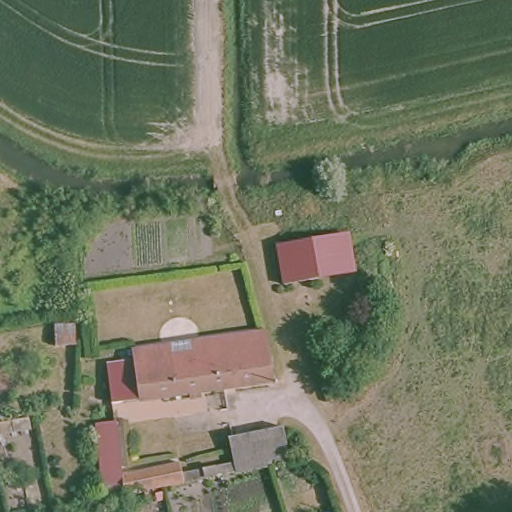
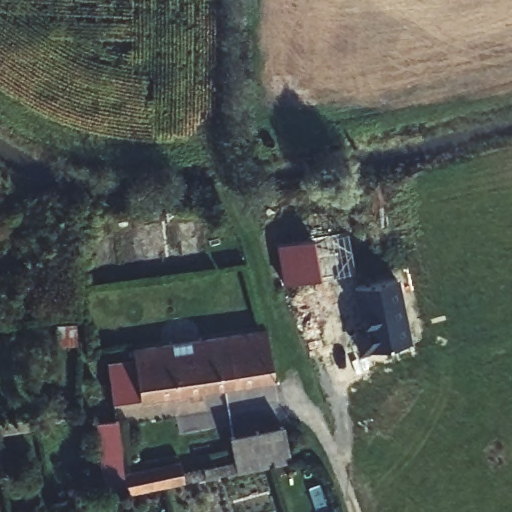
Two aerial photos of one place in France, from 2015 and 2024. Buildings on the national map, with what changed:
unchanged [(312,236),(342,229),(351,269),(320,277),(312,236)]
unchanged [(285,285),(277,245),(312,236),(320,277),(285,285)]
new [(411,342),(360,354),(354,327),(362,326),(354,286),(399,277),(411,342)]
unchanged [(79,347),(59,348),(57,327),(79,325),(79,338),(79,347)]
unchanged [(187,399),(187,393),(110,404),(106,367),(130,363),(130,349),(264,330),(270,380),(197,391),(198,398),(187,399)]
unchanged [(267,464),(216,476),(172,487),(125,498),(122,494),(102,495),(99,423),(117,421),(122,477),(177,464),(180,474),(235,461),(230,437),(280,424),(288,459),(267,464)]

